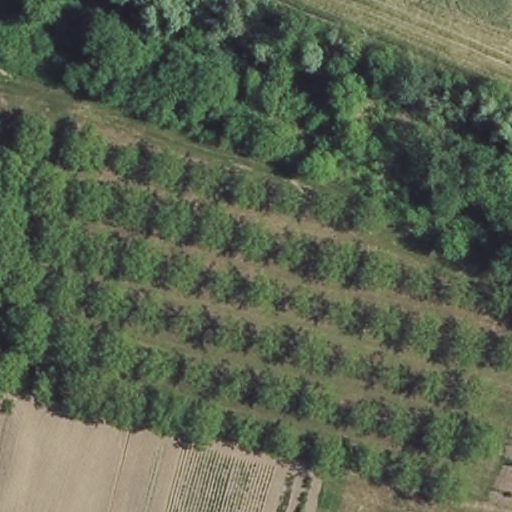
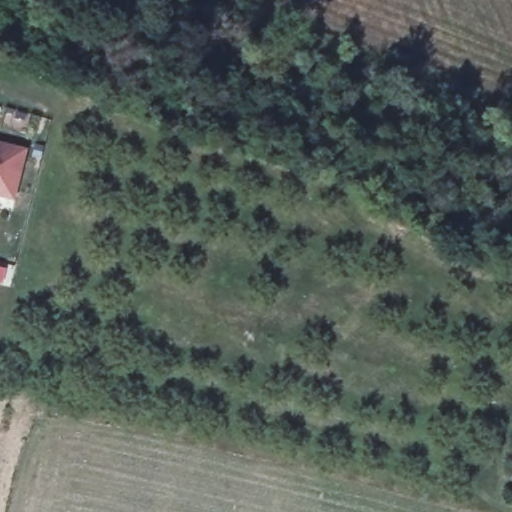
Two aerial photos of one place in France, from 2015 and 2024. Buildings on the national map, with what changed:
new [(28,149),(15,202),(0,199),(0,142),(28,149)]

